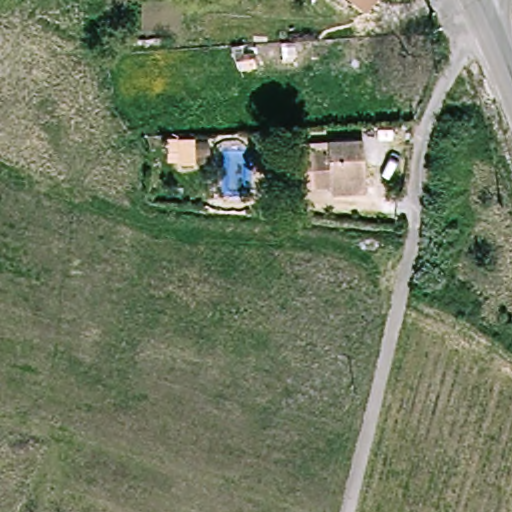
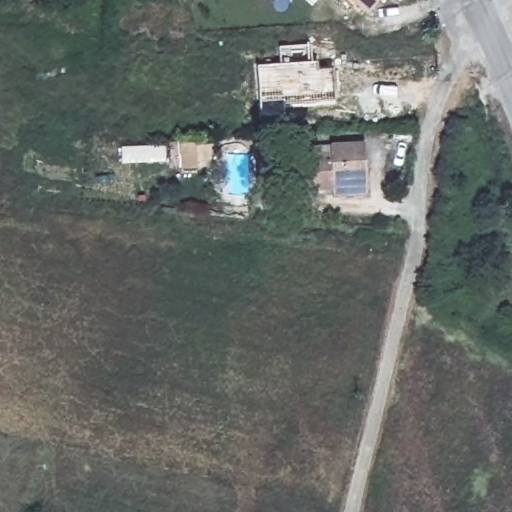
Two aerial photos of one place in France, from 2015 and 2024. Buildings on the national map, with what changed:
unchanged [(363,14),(347,0),(375,0),(363,14)]
new [(335,102),(285,107),(285,115),(260,117),(256,65),(280,63),(277,46),(310,43),(310,61),(318,61),(318,69),(332,67),(335,102)]
new [(211,163),(207,163),(207,167),(178,168),(178,144),(210,143),(211,163)]
unchanged [(328,200),(328,191),(309,192),(307,159),(322,159),(322,147),(360,146),(362,180),(362,199),(328,200)]

